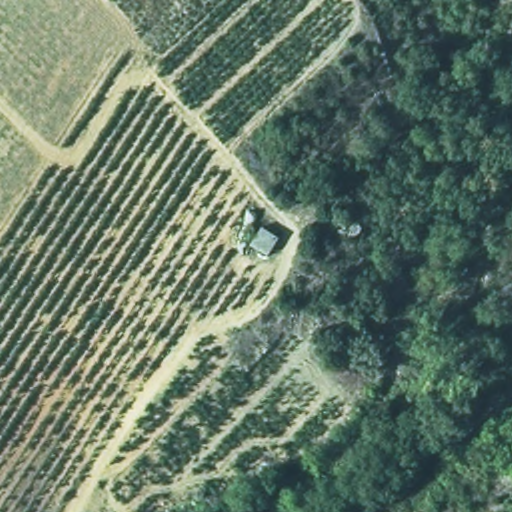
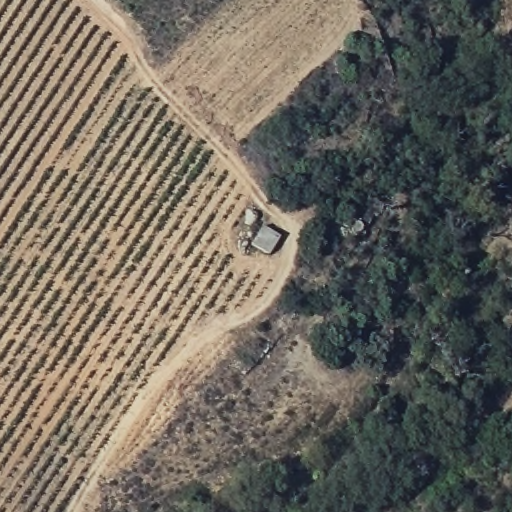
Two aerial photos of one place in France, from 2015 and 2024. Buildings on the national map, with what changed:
unchanged [(264,222),(281,232),(273,252),(253,240),(264,222)]

